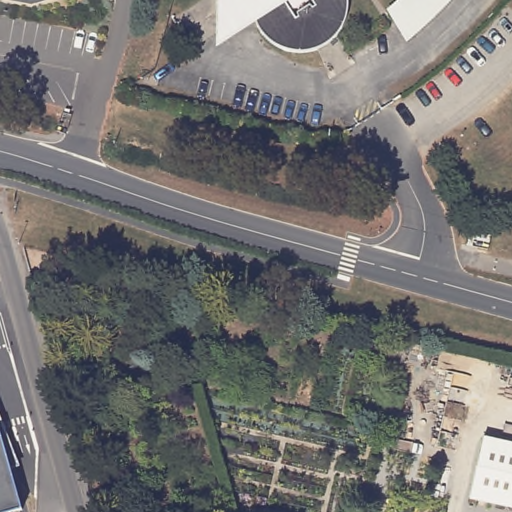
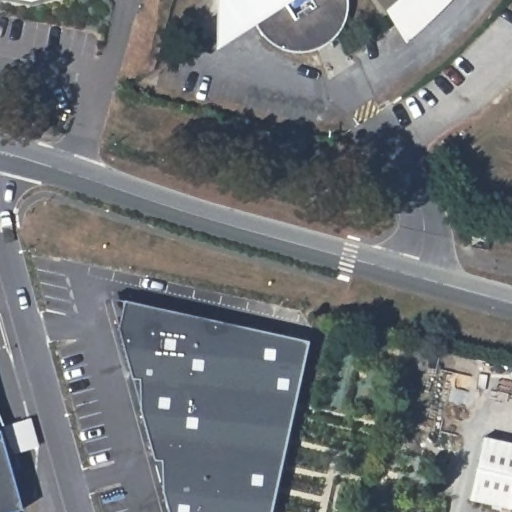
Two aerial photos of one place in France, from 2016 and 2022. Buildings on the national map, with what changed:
unchanged [(29,0),(34,0),(32,1),(29,0)]
unchanged [(255,0),(215,26),(215,0),(255,0)]
unchanged [(344,9),(342,16),(340,22),(337,27),(333,33),(329,37),(324,42),(322,43),(317,46),(311,49),(304,50),(298,51),(291,51),(285,50),(279,47),(273,45),(268,42),(263,37),(258,33),(255,27),(248,14),(264,4),(261,0),(282,0),(291,16),(295,14),(294,12),(304,5),(306,7),(310,5),(307,0),(344,0),(344,2),(344,9)]
unchanged [(425,32),(407,46),(379,5),(386,0),(460,0),(449,12),(425,32)]
new [(309,342),(272,512),(168,512),(161,491),(165,460),(155,458),(142,411),(140,378),(131,378),(119,327),(125,302),(309,342)]
unchanged [(464,500),(477,439),(512,447),(512,511),(464,500)]
unchanged [(10,512),(0,512),(0,447),(18,510),(10,512)]

